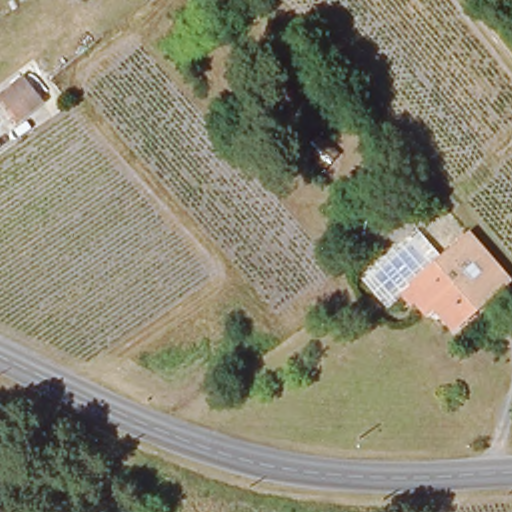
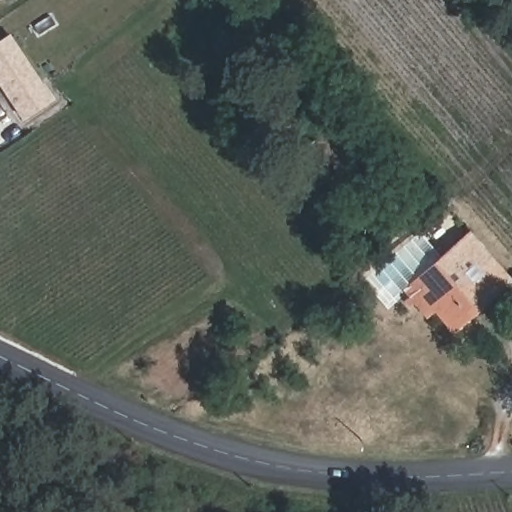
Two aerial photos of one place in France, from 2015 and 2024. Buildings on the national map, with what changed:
new [(0,85),(0,40),(11,33),(54,98),(23,119),(0,85)]
demolished [(22,118),(4,94),(23,77),(40,103),(22,118)]
unchanged [(385,268),(393,263),(406,254),(415,247),(422,242),(441,266),(446,262),(470,243),(477,238),(512,282),(512,289),(509,292),(486,310),(475,319),(466,327),(454,337),(439,318),(431,323),(406,292),(385,268)]

